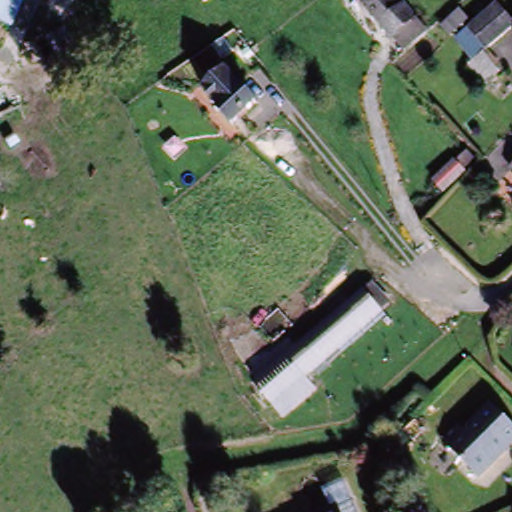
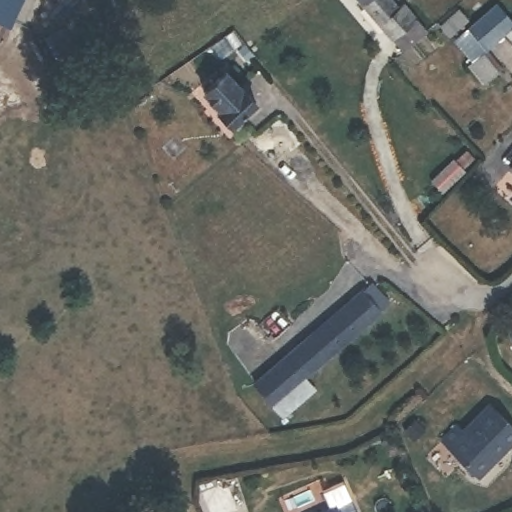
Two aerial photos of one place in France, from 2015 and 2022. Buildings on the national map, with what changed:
unchanged [(0,28),(0,0),(27,0),(11,33),(0,28)]
unchanged [(410,23),(390,44),(355,0),(384,0),(385,2),(388,0),(395,0),(410,23)]
unchanged [(512,34),(487,55),(472,36),(502,11),(512,22),(512,34)]
unchanged [(233,83),(260,114),(236,134),(225,122),(228,119),(212,100),(233,83)]
unchanged [(512,184),(507,179),(512,174),(512,184)]
unchanged [(272,406),(256,388),(371,291),(387,310),(272,406)]
unchanged [(511,457),(500,469),(496,465),(491,468),(495,473),(480,488),(443,450),(458,434),(464,438),(486,412),(512,434),(512,448),(507,453),(511,457)]
unchanged [(348,512),(339,512),(346,509),(348,512)]

